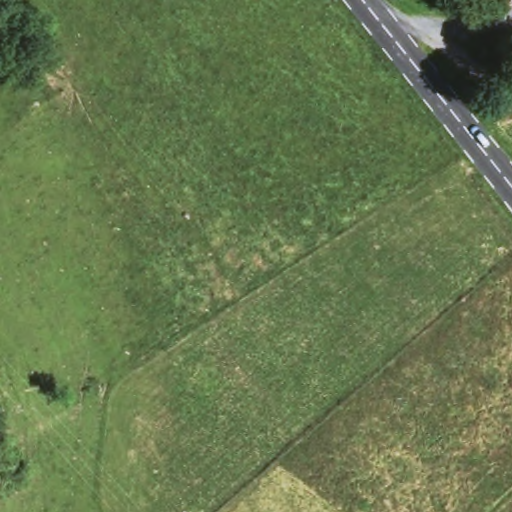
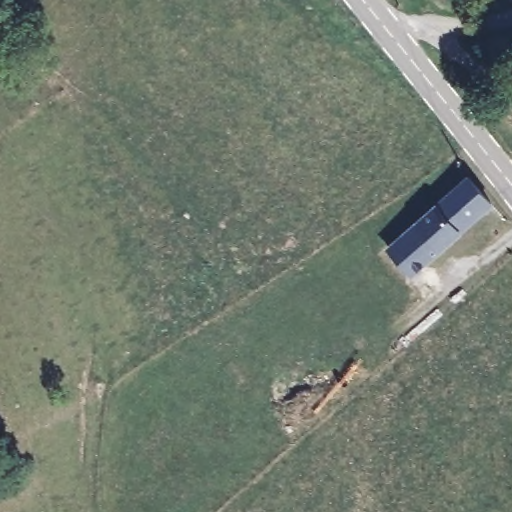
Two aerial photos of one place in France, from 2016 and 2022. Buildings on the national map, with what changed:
new [(419,272),(395,247),(473,172),(496,197),(475,218),(448,244),(419,272)]

